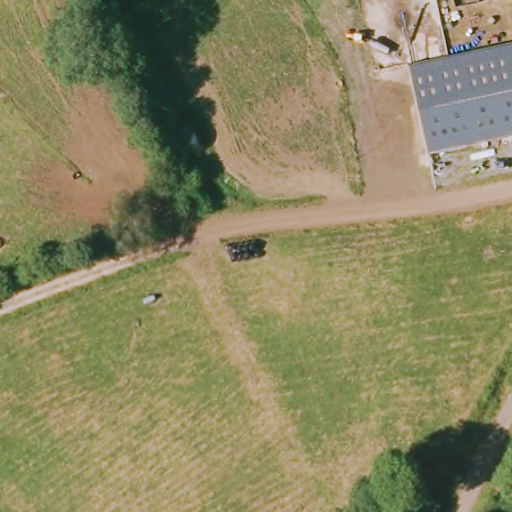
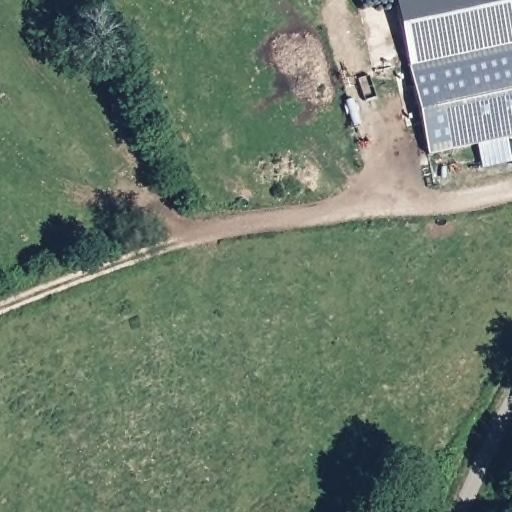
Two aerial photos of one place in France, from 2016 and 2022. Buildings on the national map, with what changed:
new [(394,0),(512,0),(512,46),(411,68),(394,0)]
unchanged [(512,47),(512,138),(429,155),(411,68),(512,47)]
new [(507,146),(512,145),(512,165),(510,160),(480,167),(475,145),(506,139),(507,146)]

